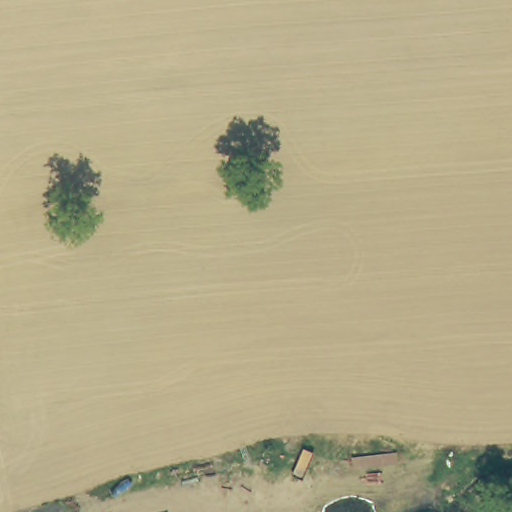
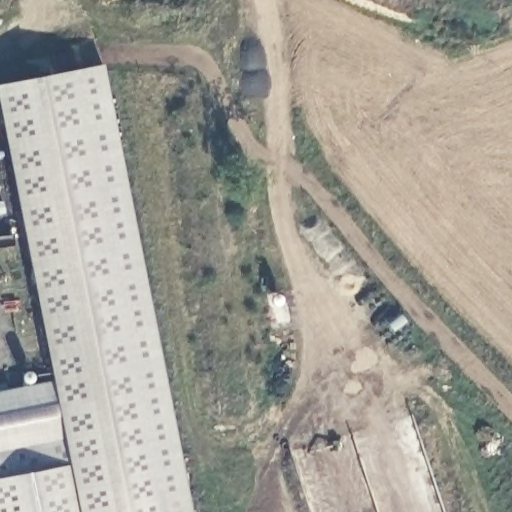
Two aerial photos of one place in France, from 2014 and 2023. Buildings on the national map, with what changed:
new [(53,380),(0,106),(0,87),(103,65),(195,512),(0,512),(0,391),(53,380)]

